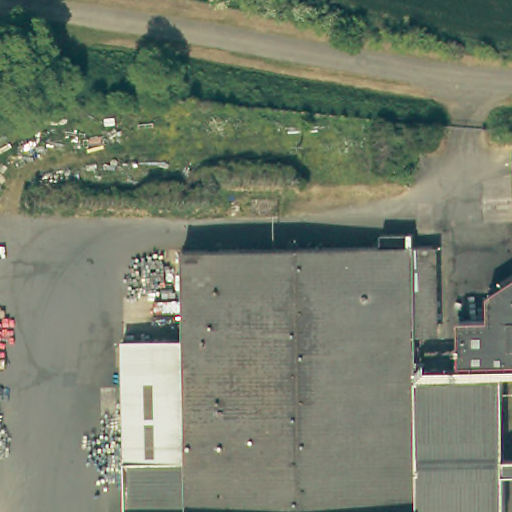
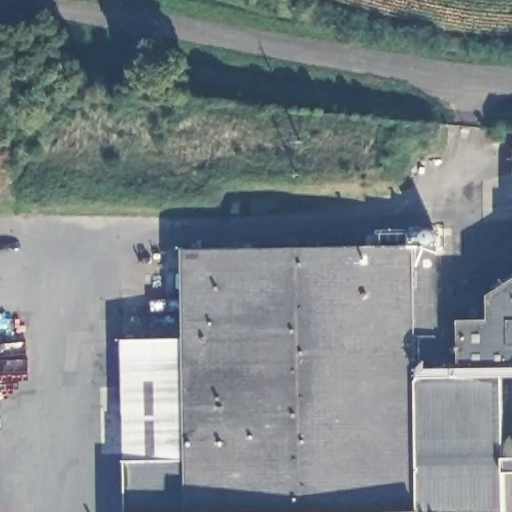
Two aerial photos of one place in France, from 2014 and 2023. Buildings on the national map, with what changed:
unchanged [(122,331),(182,330),(184,240),(435,238),(436,332),(416,332),(416,374),(460,374),(501,374),(502,512),(125,512),(122,331)]
unchanged [(460,374),(459,315),(486,314),(488,289),(501,290),(501,374),(460,374)]
unchanged [(512,290),(512,374),(501,374),(501,290),(512,290)]

